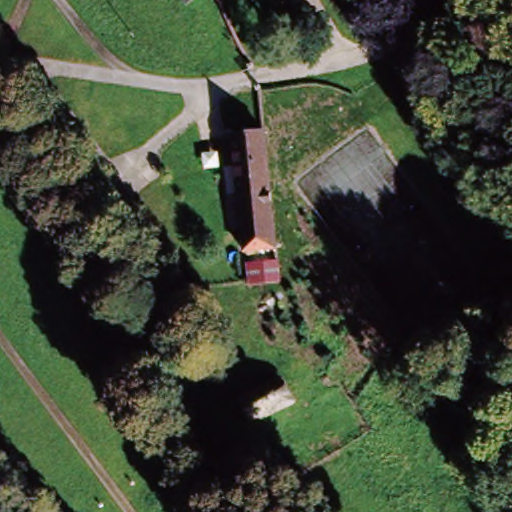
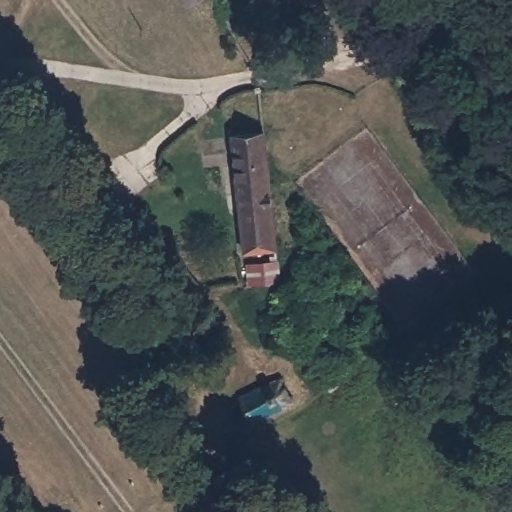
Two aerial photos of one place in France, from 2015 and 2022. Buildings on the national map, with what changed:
unchanged [(185,3),(183,0),(190,0),(185,3)]
unchanged [(271,247),(241,249),(230,135),(262,132),(271,247)]
unchanged [(290,403),(251,424),(237,401),(240,400),(272,382),(277,380),(290,403)]

